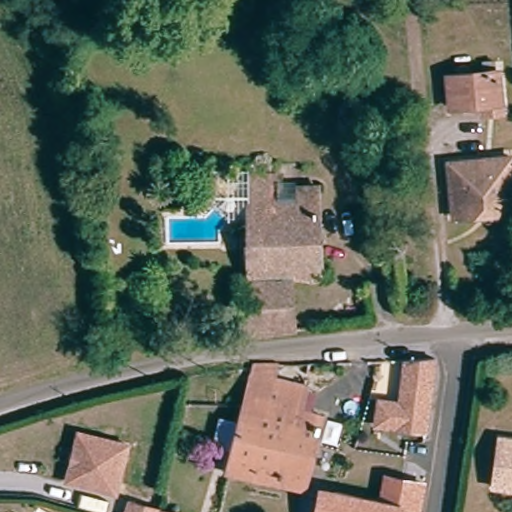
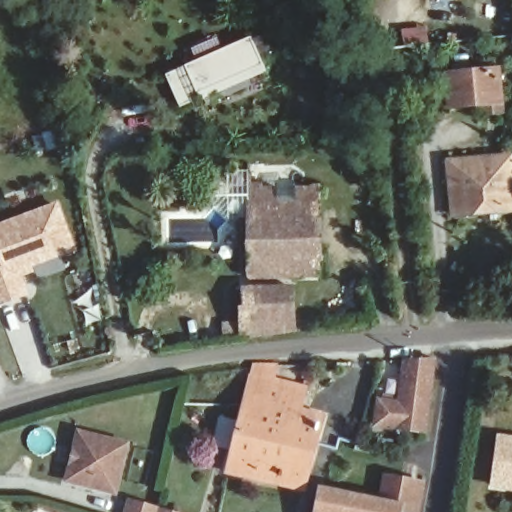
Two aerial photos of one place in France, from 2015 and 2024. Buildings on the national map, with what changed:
unchanged [(310,26),(309,0),(341,0),(343,26),(310,26)]
new [(195,59),(190,49),(216,36),(221,48),(250,35),(267,72),(215,96),(199,101),(180,109),(164,74),(184,65),(195,59)]
unchanged [(502,103),(451,108),(448,75),(498,70),(502,103)]
unchanged [(512,162),(512,211),(455,217),(450,163),(511,157),(512,162)]
unchanged [(229,325),(247,324),(245,277),(255,277),(254,225),(254,172),(252,172),(252,168),(269,168),(270,177),(281,177),(282,189),(300,189),(322,188),(325,278),(295,278),(299,333),(248,338),(248,337),(230,338),(229,325)]
unchanged [(172,172),(173,179),(182,179),(183,188),(162,189),(161,172),(169,172),(172,171),(172,172)]
unchanged [(254,225),(235,223),(210,198),(234,172),(252,172),(254,172),(254,225)]
new [(0,253),(0,227),(56,206),(72,250),(17,271),(26,294),(0,304),(0,271),(6,269),(0,253)]
unchanged [(430,404),(426,432),(378,426),(380,403),(401,404),(405,361),(435,360),(430,404)]
unchanged [(304,490),(229,473),(250,386),(243,383),(245,374),(252,374),(254,366),(280,365),(276,378),(306,386),(300,409),(325,417),(304,490)]
unchanged [(126,444),(115,494),(65,482),(70,465),(73,451),(77,433),(126,444)]
unchanged [(495,487),(501,439),(512,441),(512,489),(495,487)]
unchanged [(320,491),(381,503),(386,478),(403,482),(421,485),(423,486),(418,512),(403,512),(400,512),(316,512),(320,491)]
unchanged [(135,499),(162,508),(162,509),(171,512),(131,512),(135,499)]

